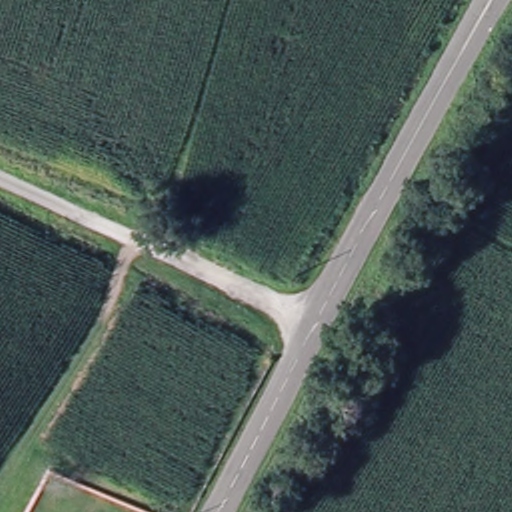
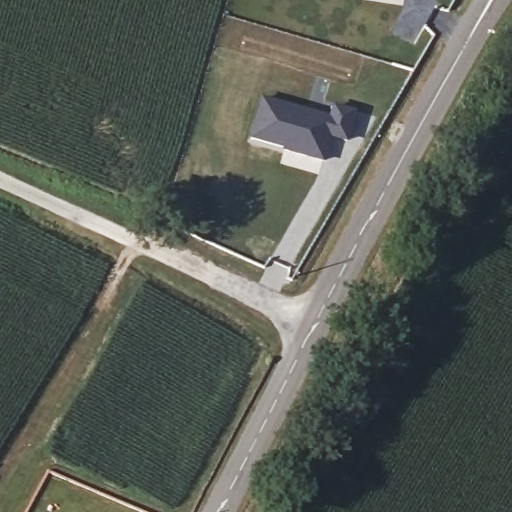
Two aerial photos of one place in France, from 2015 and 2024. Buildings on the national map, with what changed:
new [(263,95),(329,115),(333,102),(369,115),(362,138),(358,136),(358,137),(356,137),(339,160),(324,162),(294,155),(247,138),(263,95)]

